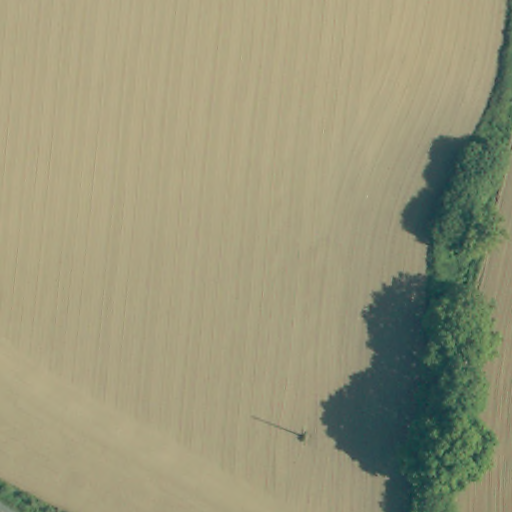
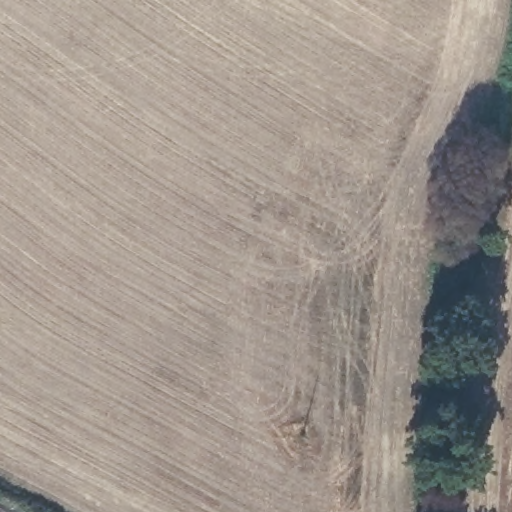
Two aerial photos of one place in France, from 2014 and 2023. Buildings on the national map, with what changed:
[]

